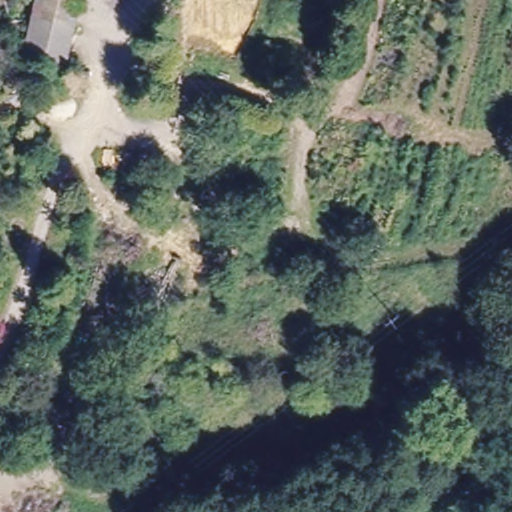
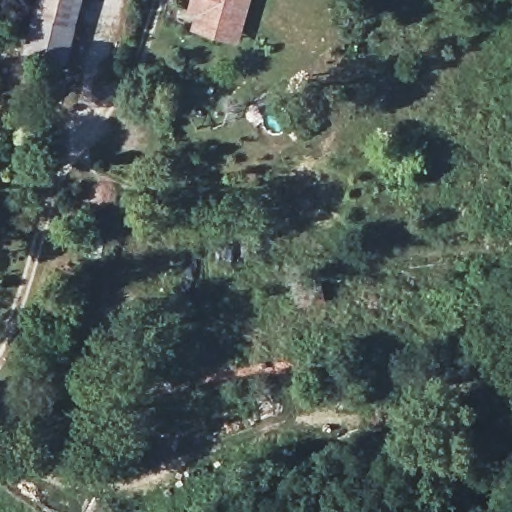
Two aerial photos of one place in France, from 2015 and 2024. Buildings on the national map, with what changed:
unchanged [(81,0),(76,20),(35,9),(37,0),(81,0)]
new [(194,16),(187,13),(190,0),(250,0),(238,44),(190,28),(194,16)]
unchanged [(25,46),(35,9),(76,20),(68,56),(25,46)]
unchanged [(0,77),(0,54),(8,56),(4,78),(0,77)]
demolished [(305,283),(305,303),(279,304),(279,282),(305,283)]

